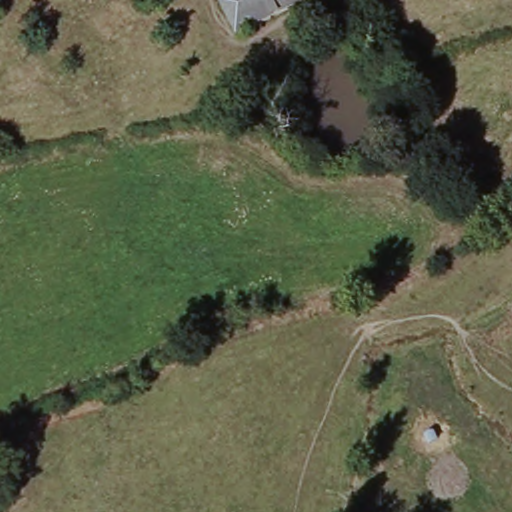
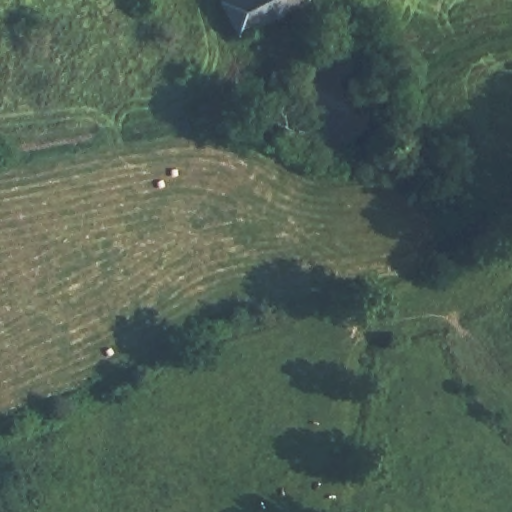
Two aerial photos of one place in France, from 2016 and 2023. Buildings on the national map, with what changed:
unchanged [(234,38),(220,0),(298,0),(302,10),(234,38)]

